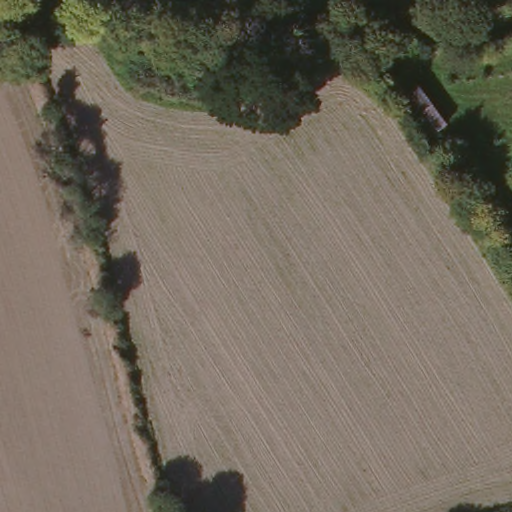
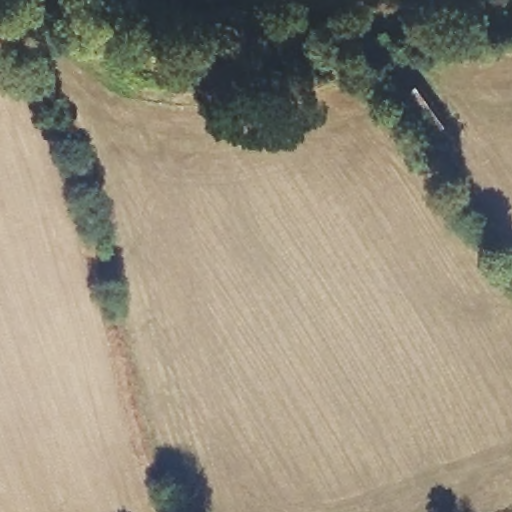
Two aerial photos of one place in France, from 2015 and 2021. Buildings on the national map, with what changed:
unchanged [(421,78),(451,123),(425,141),(393,97),(421,78)]

